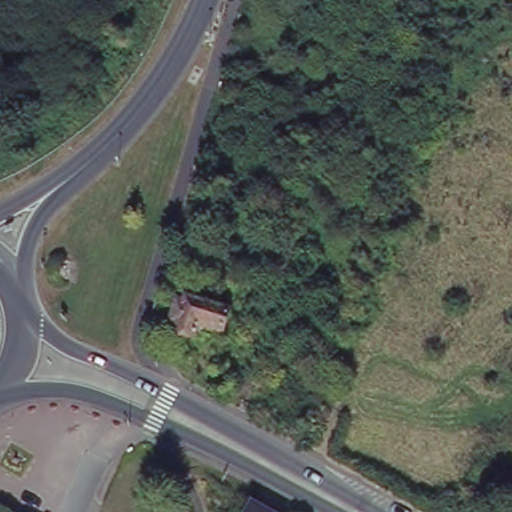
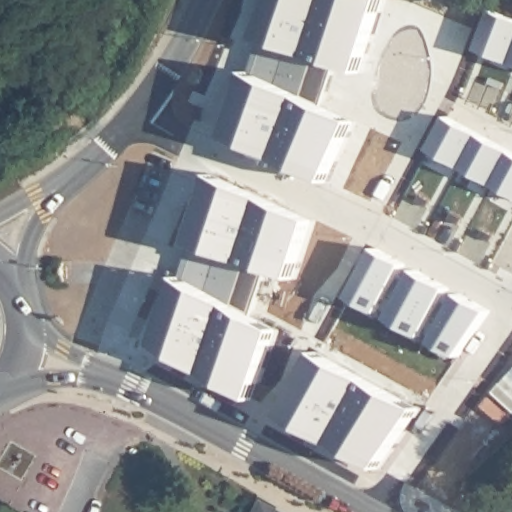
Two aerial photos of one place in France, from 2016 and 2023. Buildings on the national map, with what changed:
new [(365,67),(313,55),(308,73),(257,57),(276,0),(387,0),(365,67)]
new [(512,63),(474,46),(492,6),(512,15),(512,63)]
new [(308,73),(304,92),(355,113),(326,193),(226,144),(257,57),(308,73)]
new [(512,194),(426,148),(444,114),(512,149),(512,194)]
new [(315,217),(294,274),(263,266),(248,308),(277,325),(261,378),(247,375),(243,390),(173,353),(175,341),(160,337),(175,291),(193,243),(218,172),(315,217)]
demolished [(280,214),(275,211),(280,193),(301,200),(295,219),(280,214)]
new [(448,284),(445,287),(485,308),(455,357),(352,294),(376,248),(448,284)]
demolished [(167,331),(167,327),(163,325),(159,319),(166,302),(171,300),(176,302),(179,294),(221,309),(212,334),(202,331),(188,326),(183,336),(167,331)]
new [(320,353),(412,409),(375,466),(287,414),(320,353)]
new [(512,412),(491,395),(512,369),(512,412)]
demolished [(269,385),(260,417),(234,403),(245,370),(269,385)]
unchanged [(259,512),(250,512),(253,508),(259,512)]

